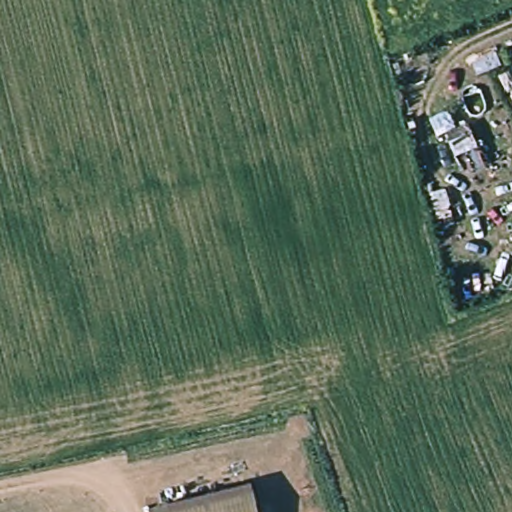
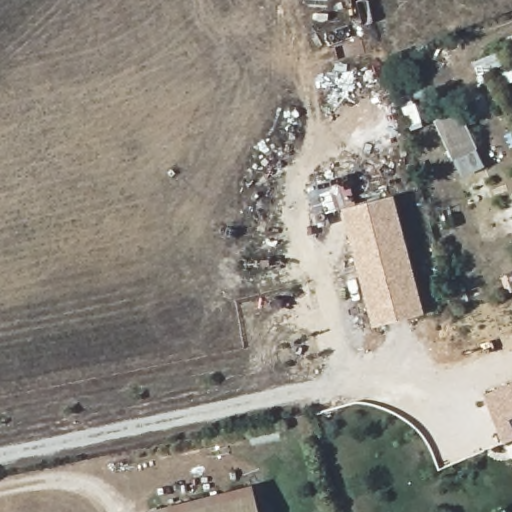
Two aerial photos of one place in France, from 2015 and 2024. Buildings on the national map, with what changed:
new [(426,313),(375,325),(344,210),(395,196),(426,313)]
new [(512,384),(512,439),(503,443),(484,396),(512,384)]
new [(253,485),(259,512),(151,512),(150,510),(253,485)]

